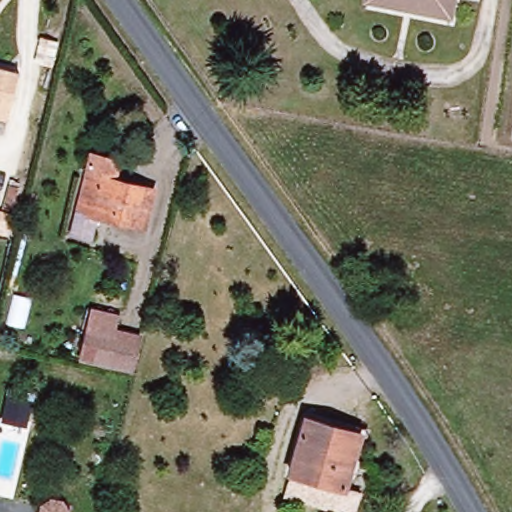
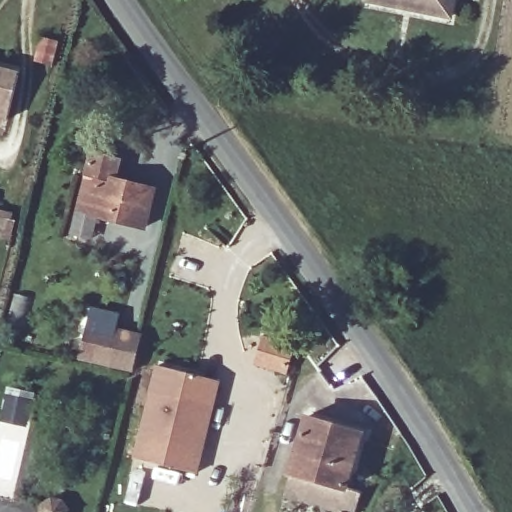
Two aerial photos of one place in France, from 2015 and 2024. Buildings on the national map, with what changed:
unchanged [(367,1),(367,0),(450,0),(447,15),(367,1)]
unchanged [(0,116),(0,66),(16,69),(6,117),(0,116)]
unchanged [(94,217),(86,242),(63,235),(86,150),(121,157),(116,178),(152,188),(146,230),(94,217)]
new [(8,232),(6,240),(0,238),(0,207),(14,210),(8,232)]
unchanged [(140,334),(131,367),(80,355),(88,321),(140,334)]
new [(221,380),(198,474),(133,458),(156,365),(221,380)]
unchanged [(361,432),(348,489),(291,473),(306,417),(361,432)]

